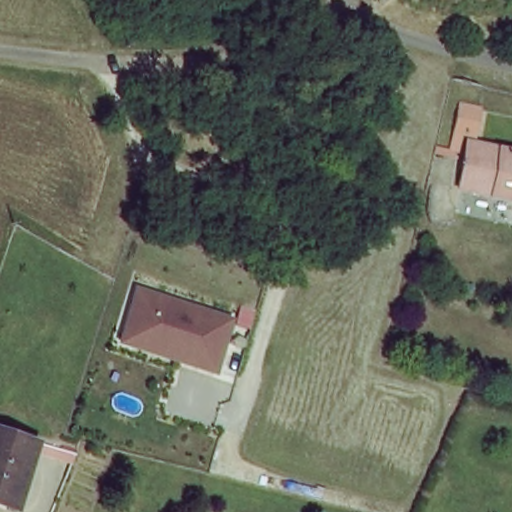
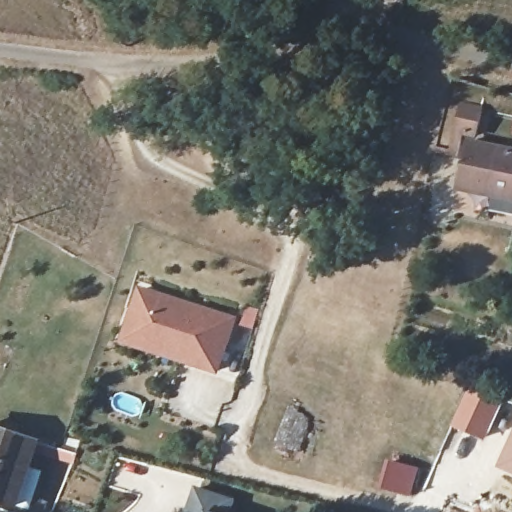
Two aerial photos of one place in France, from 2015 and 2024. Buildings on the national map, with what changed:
unchanged [(451,148),(456,126),(461,103),(482,106),(474,130),(466,128),(460,150),(451,148)]
unchanged [(461,188),(468,139),(512,147),(512,197),(499,195),(461,188)]
unchanged [(121,328),(135,286),(228,317),(211,369),(175,357),(118,338),(121,328)]
new [(470,386),(502,400),(484,440),(451,425),(470,386)]
new [(496,469),(512,429),(512,475),(496,469)]
unchanged [(39,441),(20,504),(0,499),(0,431),(39,441)]
new [(387,458),(419,466),(411,496),(380,488),(387,458)]
new [(236,499),(232,512),(186,512),(195,485),(236,499)]

